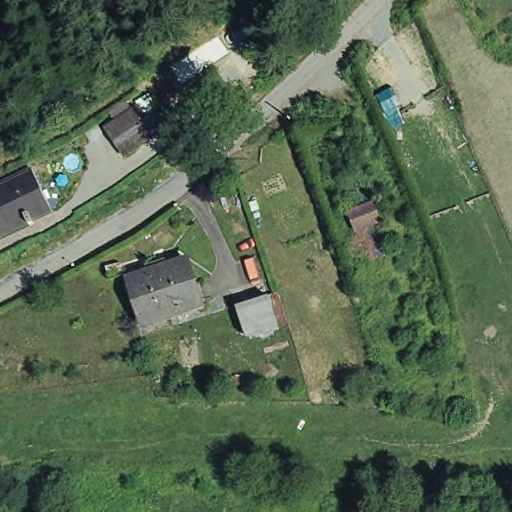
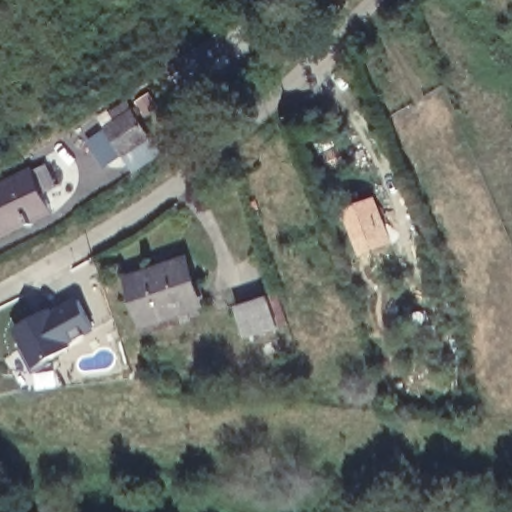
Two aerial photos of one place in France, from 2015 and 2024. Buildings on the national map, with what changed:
unchanged [(217,36),(229,51),(182,85),(171,70),(217,36)]
unchanged [(104,119),(131,102),(149,129),(123,147),(104,119)]
unchanged [(52,205),(0,231),(0,180),(31,163),(52,205)]
unchanged [(348,212),(375,203),(382,221),(355,231),(348,212)]
unchanged [(180,255),(195,299),(140,319),(125,275),(180,255)]
unchanged [(270,291),(279,322),(246,332),(236,302),(270,291)]
new [(35,374),(21,349),(26,347),(16,329),(35,318),(49,310),(51,313),(52,315),(78,300),(99,338),(35,374)]

